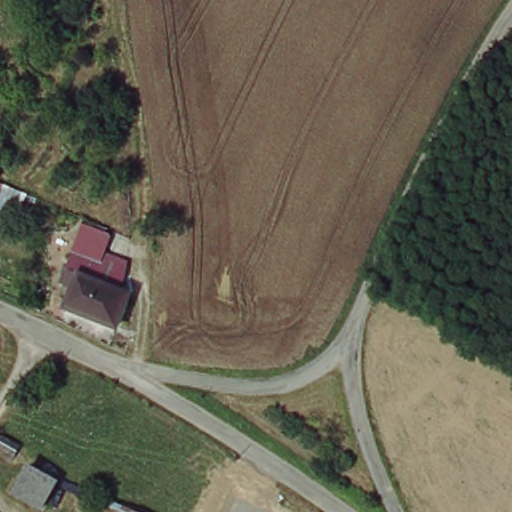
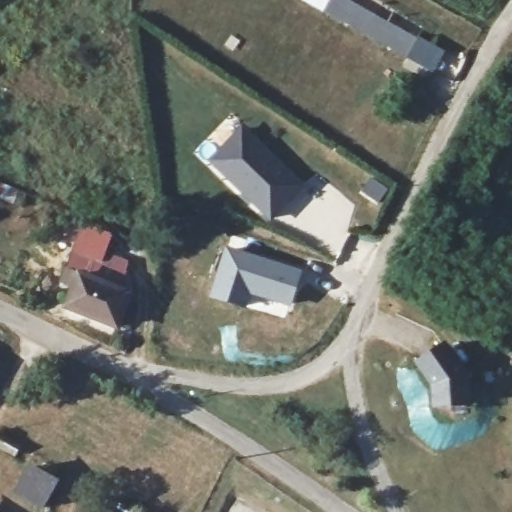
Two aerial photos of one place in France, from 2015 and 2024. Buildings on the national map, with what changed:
new [(304,0),(351,0),(418,38),(407,58),(304,0)]
new [(270,222),(206,161),(240,125),(302,186),(270,222)]
unchanged [(115,256),(129,262),(121,280),(115,292),(76,275),(70,272),(77,250),(65,245),(75,212),(105,226),(96,244),(116,253),(115,256)]
new [(226,245),(303,268),(290,310),(252,297),(250,307),(208,296),(226,245)]
unchanged [(115,292),(121,280),(139,288),(122,331),(63,306),(76,275),(115,292)]
new [(429,387),(412,363),(444,340),(466,372),(470,407),(430,410),(429,387)]
unchanged [(15,446),(10,455),(0,449),(0,437),(15,446)]
unchanged [(50,504),(20,488),(34,464),(63,478),(50,504)]

